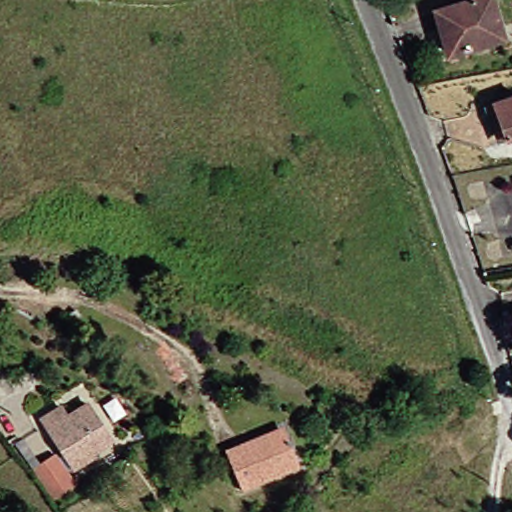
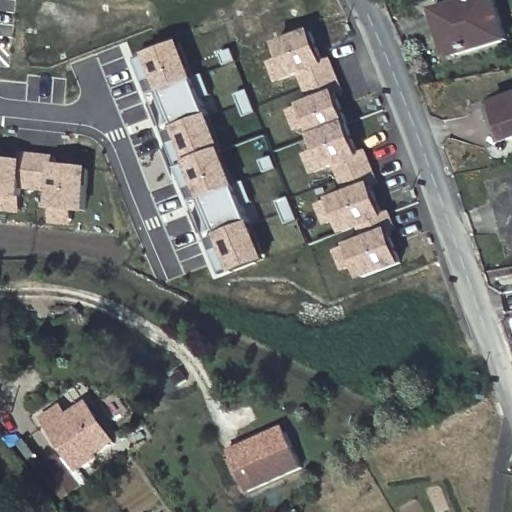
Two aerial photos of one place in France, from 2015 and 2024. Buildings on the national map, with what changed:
unchanged [(446,59),(437,35),(430,37),(423,16),(476,0),(481,0),(496,44),(446,59)]
new [(325,61),(334,57),(346,91),(337,94),(360,152),(369,149),(381,181),(372,185),(383,213),(392,210),(398,227),(390,231),(402,263),(359,281),(353,267),(342,272),(333,251),(346,246),(365,238),(360,227),(342,235),(337,222),(325,226),(317,204),(328,199),(348,191),(339,166),(326,171),(313,175),(305,154),(316,150),(308,127),(297,131),(289,110),(302,104),(315,99),(305,74),(290,79),(278,82),(270,62),(282,57),(277,44),(313,30),(325,61)]
new [(264,261),(221,277),(207,241),(217,237),(202,199),(194,201),(168,132),(177,129),(162,91),(155,94),(142,61),(149,57),(148,55),(183,41),(264,261)]
unchanged [(485,104),(507,95),(512,106),(512,135),(498,140),(485,104)]
unchanged [(512,152),(511,145),(512,145),(512,152)]
new [(56,164),(90,167),(85,213),(72,212),(70,225),(50,223),(51,211),(47,210),(49,190),(23,187),(21,214),(0,211),(0,204),(2,197),(0,196),(0,157),(22,160),(22,151),(55,155),(56,164)]
unchanged [(34,422),(53,408),(61,421),(81,407),(105,441),(104,442),(66,468),(34,422)]
unchanged [(292,472),(238,494),(220,452),(232,447),(235,452),(277,434),(292,472)]
unchanged [(49,502),(30,472),(49,458),(69,488),(49,502)]

